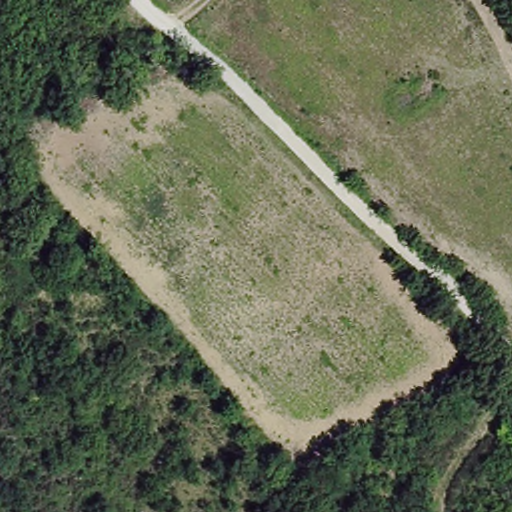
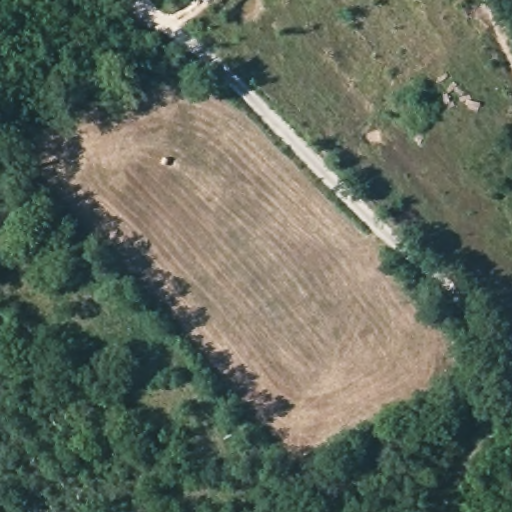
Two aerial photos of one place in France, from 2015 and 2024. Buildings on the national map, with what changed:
[]

